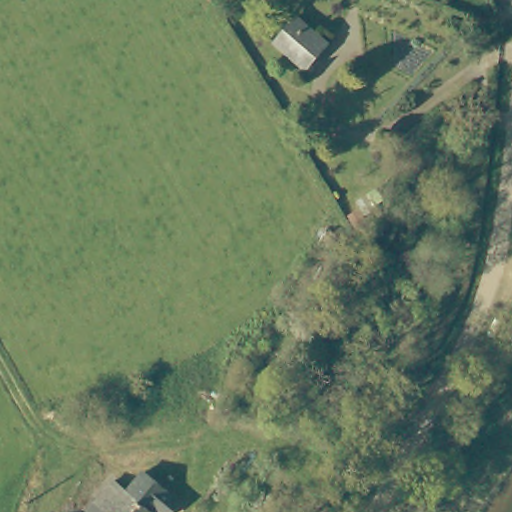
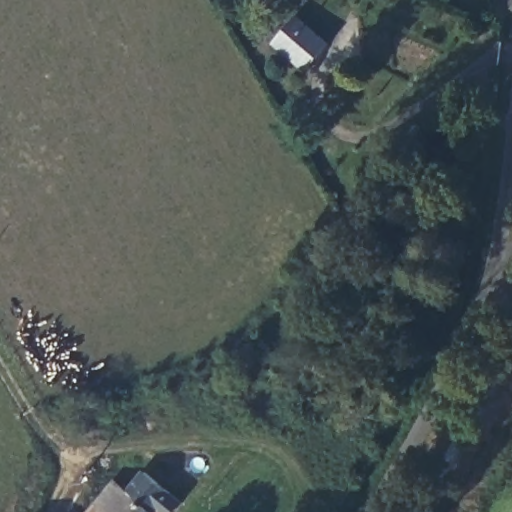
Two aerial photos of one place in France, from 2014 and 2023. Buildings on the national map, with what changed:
unchanged [(275,44),(295,18),(317,35),(297,61),(275,44)]
unchanged [(470,125),(447,123),(450,110),(471,111),(470,125)]
unchanged [(175,512),(156,512),(96,512),(93,509),(115,483),(129,494),(147,474),(183,503),(176,510),(175,512)]
unchanged [(93,509),(96,512),(90,512),(93,509)]

